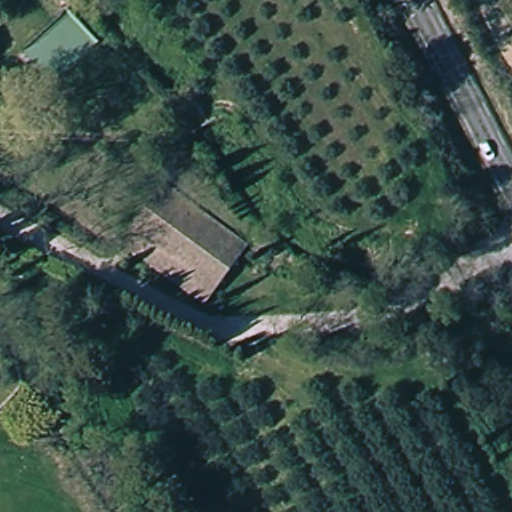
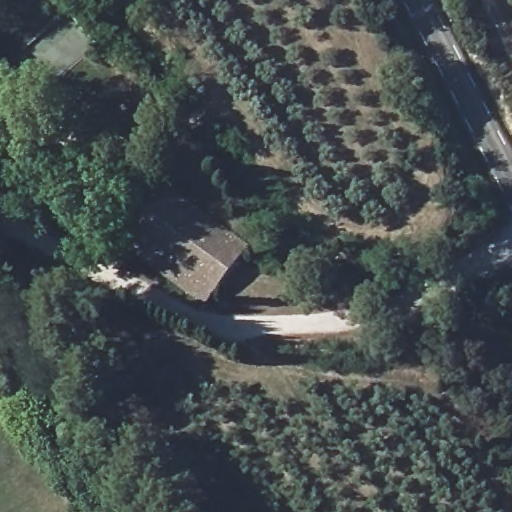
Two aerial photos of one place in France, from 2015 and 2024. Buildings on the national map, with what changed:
unchanged [(169,191),(252,258),(206,310),(121,241),(169,191)]

